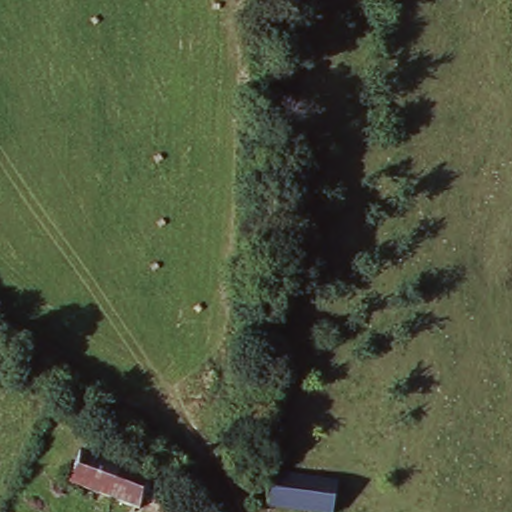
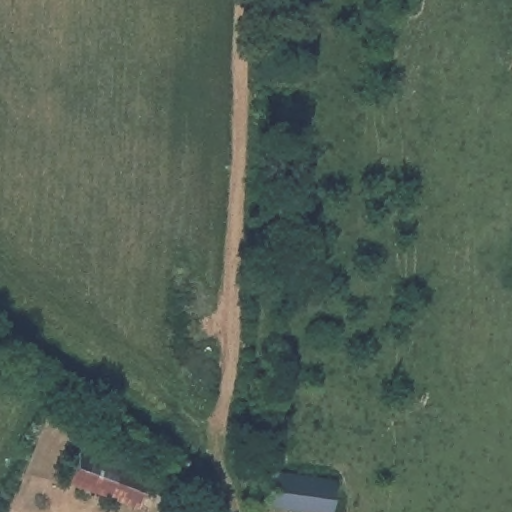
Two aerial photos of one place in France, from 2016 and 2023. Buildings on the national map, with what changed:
unchanged [(153,472),(151,479),(162,484),(157,497),(146,493),(142,503),(71,478),(69,476),(80,445),(153,472)]
unchanged [(334,512),(313,512),(275,505),(252,501),(257,467),(279,471),(337,482),(336,495),(334,512)]

